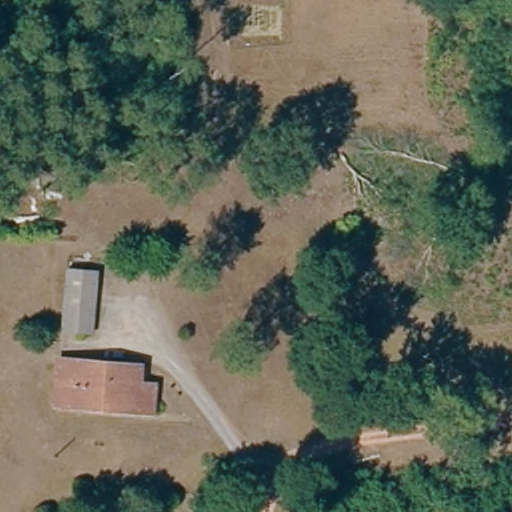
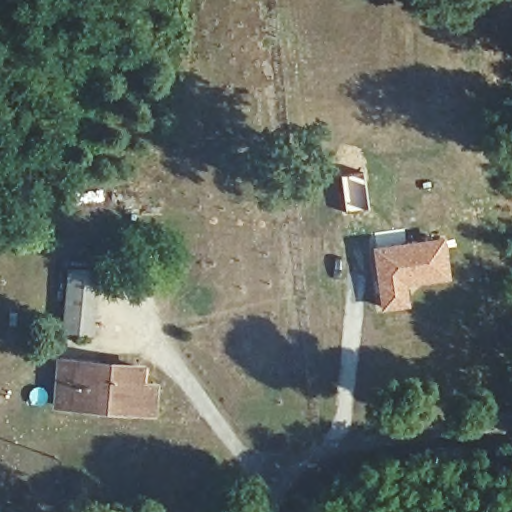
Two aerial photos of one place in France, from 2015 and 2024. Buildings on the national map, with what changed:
new [(365,177),(368,209),(347,211),(343,176),(365,177)]
new [(443,235),(450,280),(406,287),(408,307),(381,311),(370,244),(443,235)]
unchanged [(69,271),(99,273),(94,332),(65,331),(69,271)]
unchanged [(66,368),(81,370),(81,364),(147,367),(143,395),(141,412),(62,408),(62,404),(66,368)]

